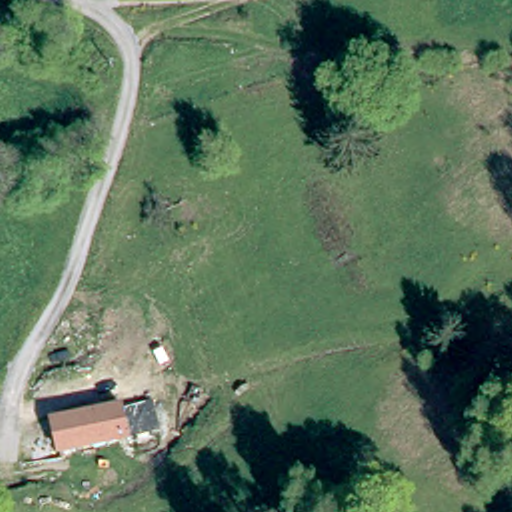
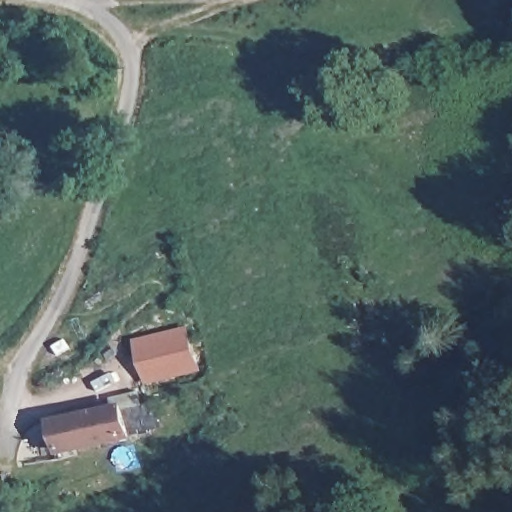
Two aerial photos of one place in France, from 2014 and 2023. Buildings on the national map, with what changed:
new [(188,324),(201,370),(146,384),(136,337),(188,324)]
unchanged [(86,448),(88,457),(88,458),(73,461),(70,449),(58,452),(53,421),(121,405),(131,438),(86,448)]

